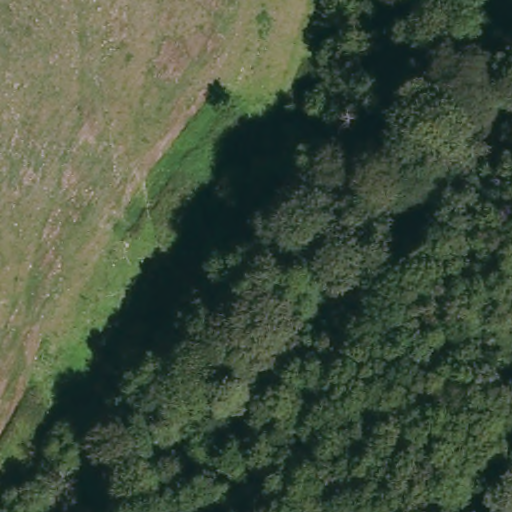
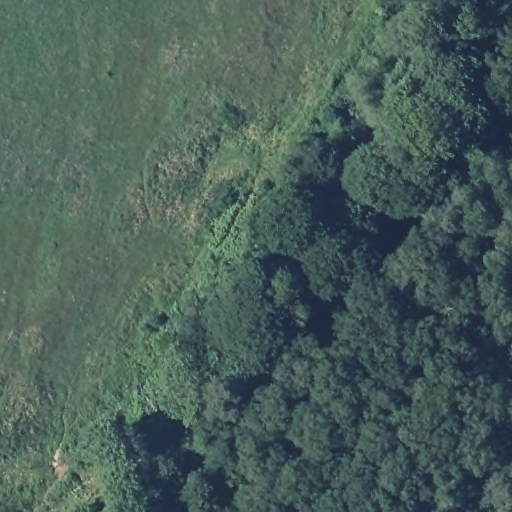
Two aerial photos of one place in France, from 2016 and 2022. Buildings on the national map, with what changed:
[]

